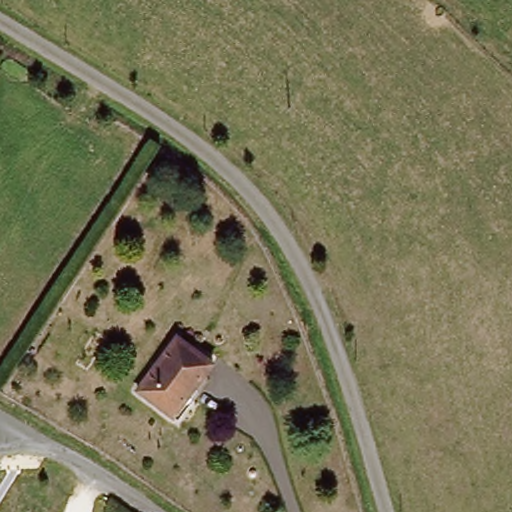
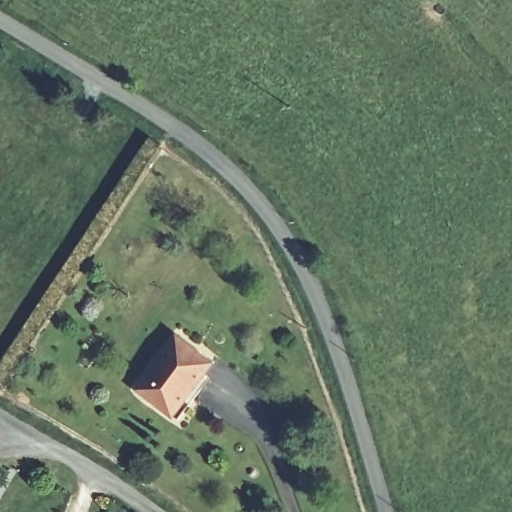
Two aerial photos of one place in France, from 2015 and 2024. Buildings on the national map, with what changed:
unchanged [(178,334),(215,364),(168,421),(134,394),(178,334)]

